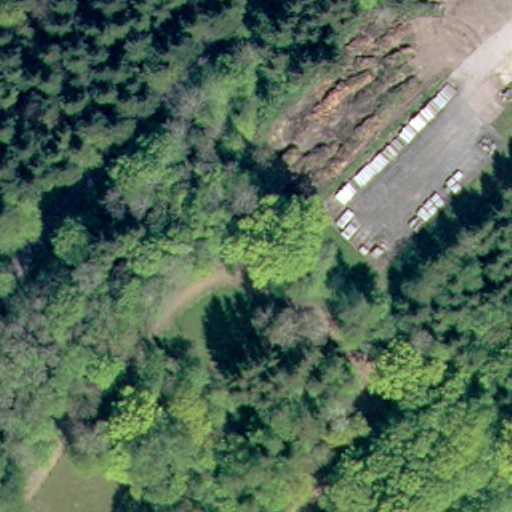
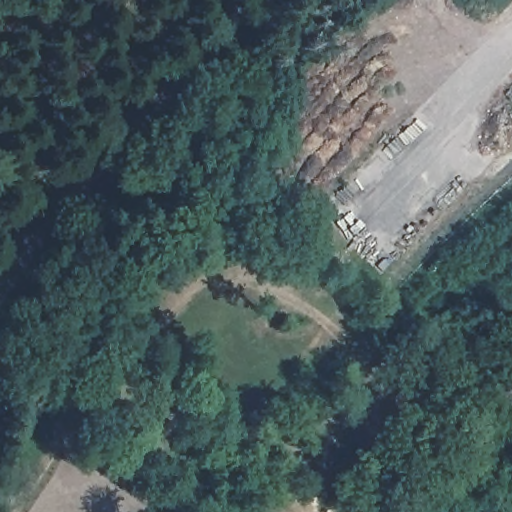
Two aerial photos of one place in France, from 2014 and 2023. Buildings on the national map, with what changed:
unchanged [(478,512),(421,512),(470,451),(507,478),(478,512)]

